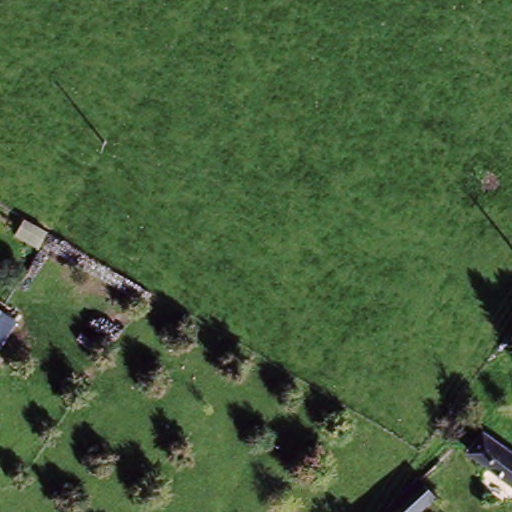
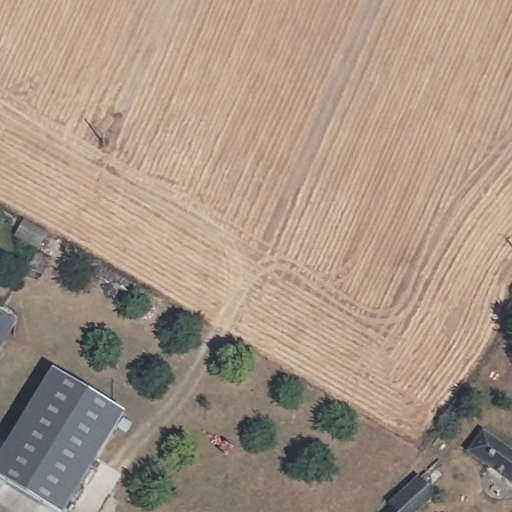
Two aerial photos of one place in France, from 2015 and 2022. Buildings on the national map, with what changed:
unchanged [(0,320),(0,309),(5,312),(0,320)]
new [(64,512),(55,512),(0,477),(0,451),(51,366),(126,411),(64,512)]
unchanged [(482,462),(502,439),(512,447),(512,484),(482,462)]
unchanged [(432,462),(444,467),(434,480),(438,484),(418,510),(420,512),(389,512),(432,462)]

